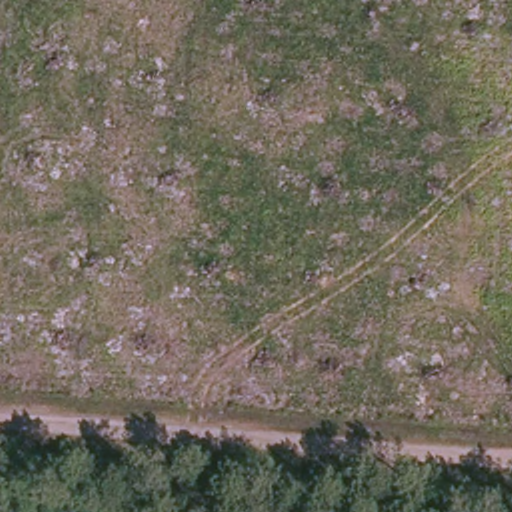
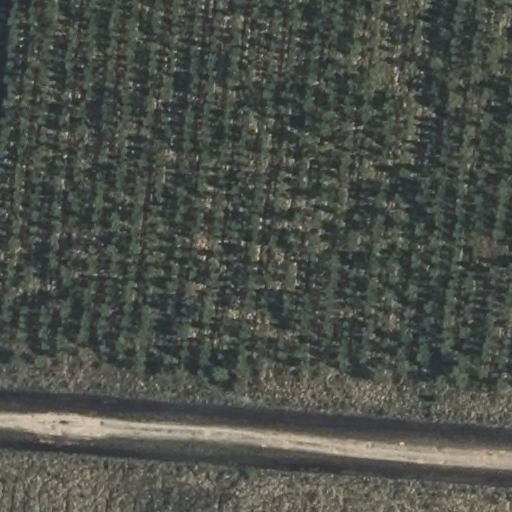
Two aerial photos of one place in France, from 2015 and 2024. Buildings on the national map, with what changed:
[]

